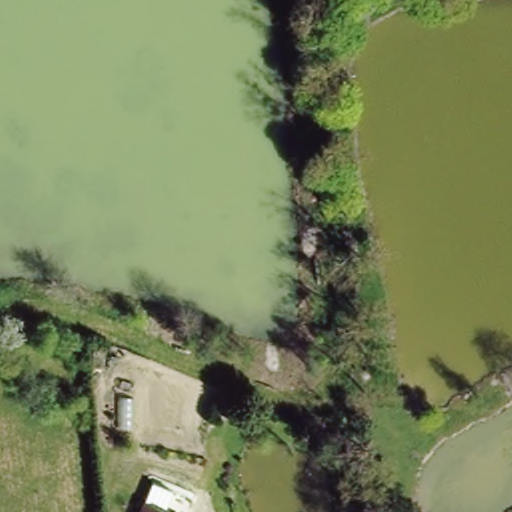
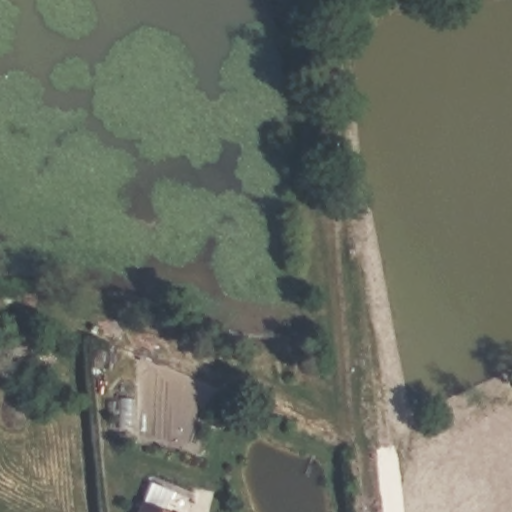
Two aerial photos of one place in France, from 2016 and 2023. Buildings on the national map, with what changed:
unchanged [(141,512),(145,503),(167,512),(141,512)]

